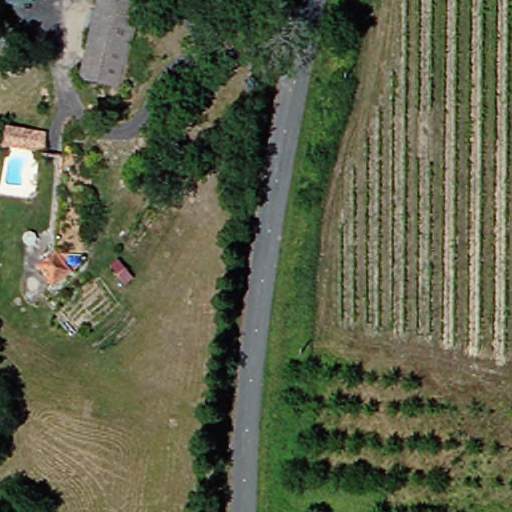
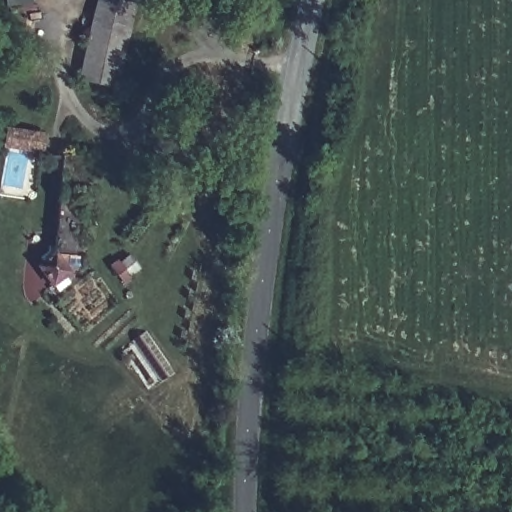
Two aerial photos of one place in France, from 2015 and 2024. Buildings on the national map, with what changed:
unchanged [(83,76),(103,0),(147,0),(123,86),(83,76)]
unchanged [(47,126),(44,156),(0,150),(4,123),(47,126)]

